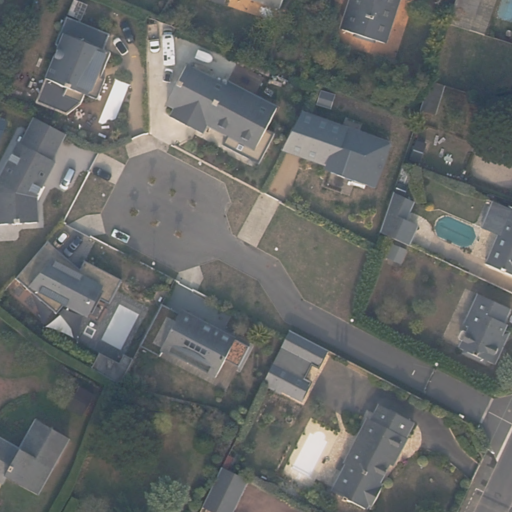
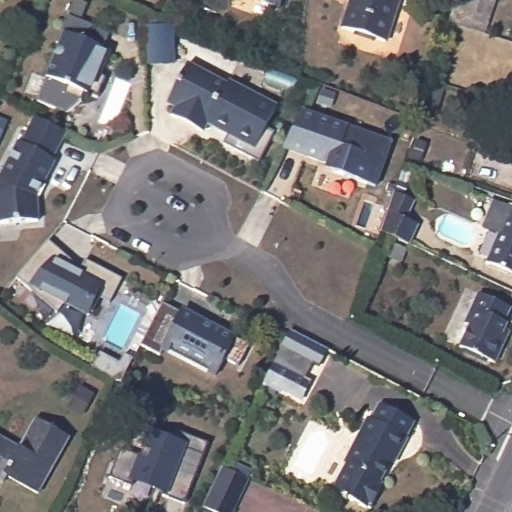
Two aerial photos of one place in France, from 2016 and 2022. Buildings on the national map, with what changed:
unchanged [(229,0),(236,0),(236,2),(229,0)]
unchanged [(274,0),(291,0),(290,5),(274,0)]
unchanged [(340,28),(349,0),(396,0),(382,42),(340,28)]
unchanged [(492,0),(482,32),(460,25),(468,0),(492,0)]
unchanged [(39,97),(66,43),(62,41),(76,15),(117,36),(109,51),(116,55),(109,70),(104,68),(100,76),(109,81),(99,100),(86,94),(82,102),(67,112),(39,97)]
unchanged [(179,105),(171,100),(191,62),(230,83),(232,79),(281,104),(259,146),(211,121),(207,130),(175,113),(179,105)]
unchanged [(432,78),(446,83),(438,110),(423,106),(432,78)]
unchanged [(392,144),(377,187),(334,172),(336,166),(285,150),(294,131),(305,112),(392,144)]
unchanged [(53,159),(56,160),(37,196),(40,221),(0,225),(0,178),(19,141),(22,143),(36,117),(67,133),(53,159)]
unchanged [(405,247),(378,235),(385,213),(392,192),(412,200),(402,220),(414,225),(405,247)]
unchanged [(507,208),(509,205),(512,206),(512,276),(483,264),(495,234),(480,228),(491,200),(507,208)]
unchanged [(35,256),(50,239),(72,259),(67,265),(80,272),(92,261),(126,285),(111,307),(97,298),(87,313),(69,299),(59,311),(18,276),(35,256)]
unchanged [(503,335),(492,359),(458,344),(467,323),(462,320),(476,290),(507,304),(501,318),(504,319),(498,333),(503,335)]
unchanged [(167,304),(192,318),(189,324),(201,331),(206,322),(253,348),(242,368),(228,360),(219,378),(167,350),(164,357),(145,346),(167,304)]
unchanged [(322,368),(316,364),(308,379),(315,382),(305,401),(267,381),(283,348),(290,337),(293,330),(331,349),(322,368)]
unchanged [(78,389),(92,398),(82,414),(69,407),(78,389)]
unchanged [(413,424),(406,439),(408,440),(401,453),(395,450),(378,483),(382,484),(369,509),(366,507),(365,508),(332,491),(347,464),(345,463),(358,436),(363,438),(379,407),(413,424)]
new [(167,496),(134,483),(132,486),(109,477),(132,414),(207,444),(186,503),(167,496)]
unchanged [(35,415),(68,434),(37,489),(7,472),(3,478),(0,476),(0,432),(19,443),(35,415)]
unchanged [(224,465),(250,478),(233,512),(220,512),(205,505),(224,465)]

